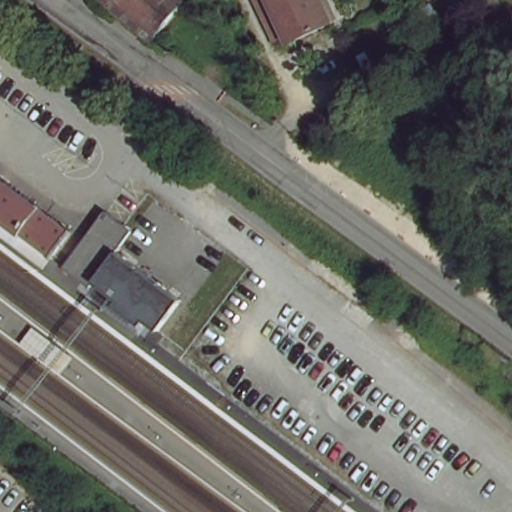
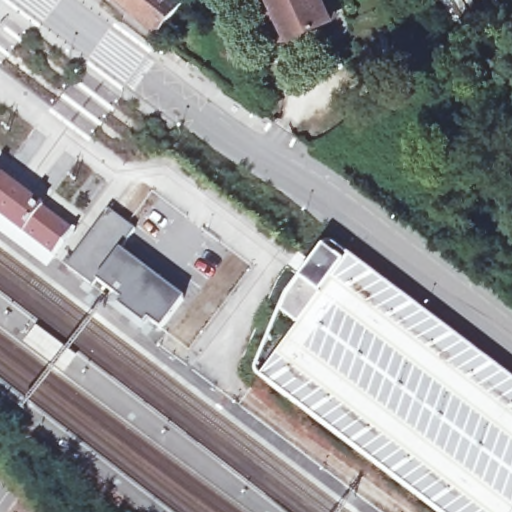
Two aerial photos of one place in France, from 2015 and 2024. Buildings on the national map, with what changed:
unchanged [(119,0),(186,0),(162,37),(119,0)]
unchanged [(291,41),(272,0),(323,0),(333,21),(291,41)]
unchanged [(55,259),(0,214),(0,172),(75,233),(55,259)]
unchanged [(87,278),(62,259),(102,210),(128,227),(115,243),(114,245),(91,273),(87,278)]
unchanged [(114,245),(115,243),(178,291),(155,322),(142,312),(138,317),(112,297),(116,292),(91,273),(114,245)]
new [(256,374),(254,367),(256,360),(284,295),(323,246),(329,244),(334,245),(359,266),(512,381),(512,512),(437,512),(259,377),(256,374)]
demolished [(187,352),(228,302),(248,316),(211,367),(187,352)]

